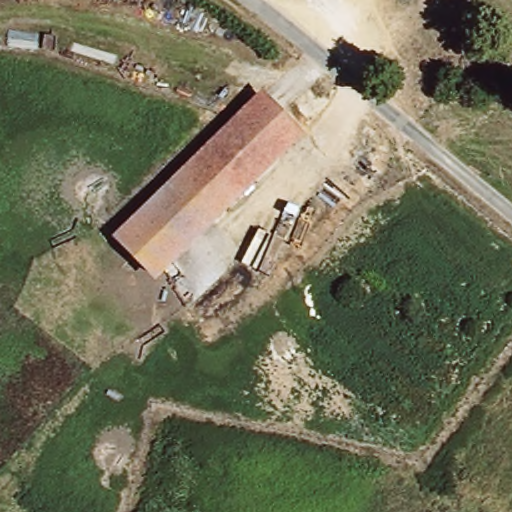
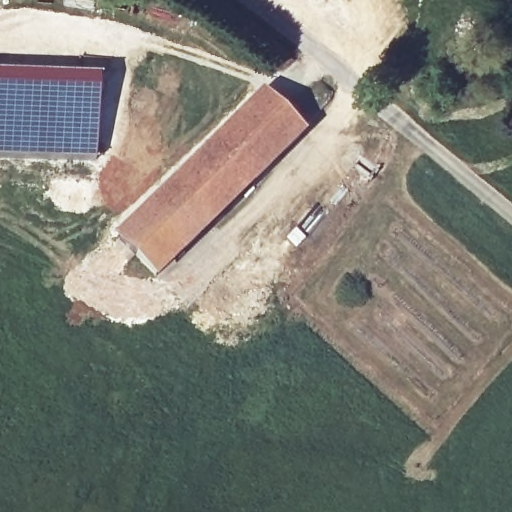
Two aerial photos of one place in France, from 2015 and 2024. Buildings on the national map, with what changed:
new [(100,79),(96,163),(0,161),(0,75),(100,79)]
unchanged [(152,278),(115,240),(260,98),(297,137),(152,278)]

